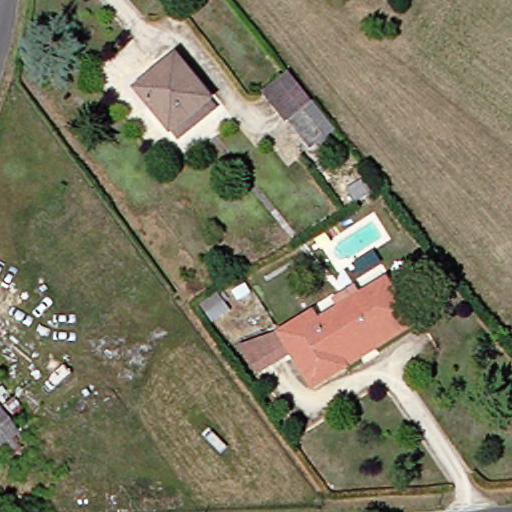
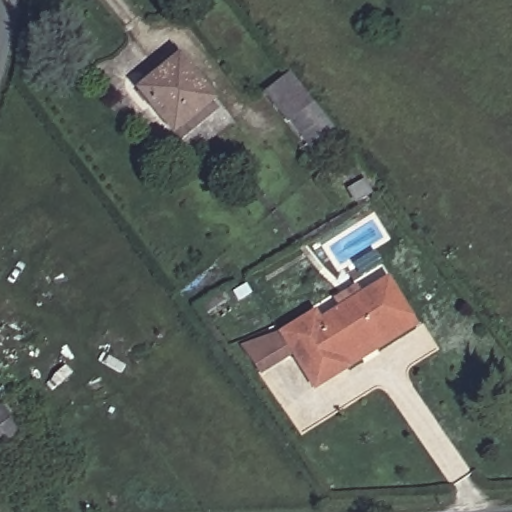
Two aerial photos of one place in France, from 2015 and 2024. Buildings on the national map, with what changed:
unchanged [(184,138),(177,129),(175,130),(142,88),(181,57),(215,99),(213,101),(220,109),(184,138)]
unchanged [(300,124),(297,126),(274,98),(297,78),(321,107),(344,135),(336,141),(322,153),(300,124)]
unchanged [(366,179),(374,192),(360,201),(351,188),(366,179)]
unchanged [(393,278),(421,324),(352,366),(347,357),(405,322),(382,285),(393,278)]
unchanged [(323,321),(345,308),(340,299),(359,287),(364,296),(382,285),(405,322),(347,357),(352,366),(318,387),(297,352),(285,333),(318,313),(323,321)]
unchanged [(201,305),(218,293),(230,310),(213,322),(201,305)]
unchanged [(264,372),(247,347),(285,333),(297,352),(264,372)]
unchanged [(0,410),(2,408),(11,400),(27,421),(17,428),(21,434),(0,450),(0,410)]

